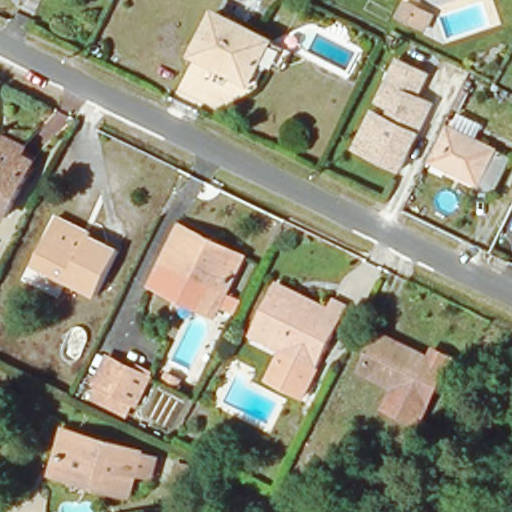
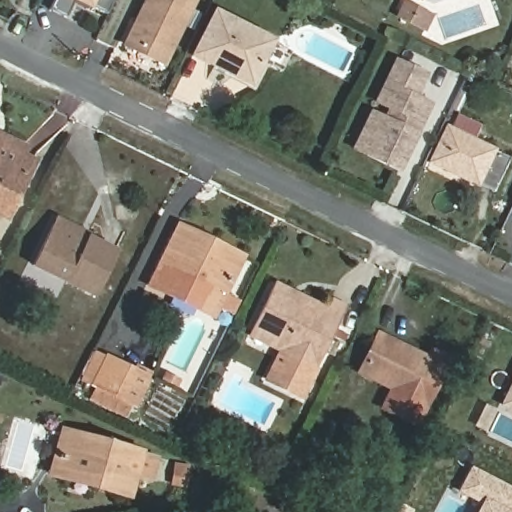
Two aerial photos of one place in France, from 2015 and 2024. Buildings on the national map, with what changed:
new [(66,18),(49,10),(53,0),(113,0),(106,15),(88,6),(86,10),(73,4),(66,18)]
new [(194,0),(163,64),(124,46),(146,0),(194,0)]
unchanged [(409,0),(438,13),(428,34),(397,18),(405,0),(409,0)]
unchanged [(254,84),(197,55),(219,12),(276,41),(254,84)]
unchanged [(372,108),(389,117),(394,108),(380,101),(400,59),(430,73),(420,96),(435,103),(403,170),(371,155),(354,146),(372,108)]
unchanged [(494,193),(431,163),(447,128),(511,159),(494,193)]
unchanged [(0,219),(0,143),(23,155),(18,163),(31,170),(5,222),(0,219)]
unchanged [(96,295),(33,265),(53,226),(56,218),(89,234),(86,237),(117,252),(96,295)]
unchanged [(161,263),(180,225),(212,242),(243,257),(240,263),(224,295),(161,263)]
unchanged [(224,295),(213,319),(149,288),(161,263),(224,295)]
unchanged [(326,314),(330,306),(347,313),(317,373),(303,402),(270,386),(284,356),(250,340),(275,290),(293,299),(292,302),(300,306),(301,302),(326,314)]
unchanged [(381,337),(401,346),(402,344),(432,358),(437,350),(454,358),(422,425),(387,408),(397,388),(364,372),(381,337)]
unchanged [(133,404),(96,385),(110,358),(147,377),(133,404)]
new [(512,381),(512,412),(500,406),(512,381)]
unchanged [(51,468),(61,431),(132,451),(131,453),(151,459),(146,477),(126,472),(120,495),(99,489),(50,475),(51,468)]
new [(458,493),(472,467),(512,487),(512,512),(477,512),(481,505),(458,493)]

